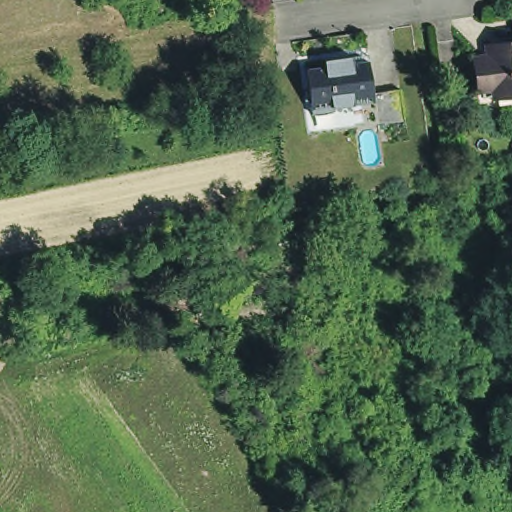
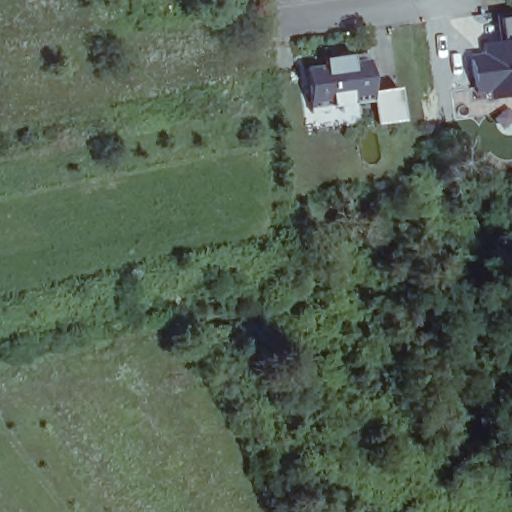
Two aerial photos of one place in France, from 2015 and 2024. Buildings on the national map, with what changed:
unchanged [(495,96),(478,98),(474,69),(491,67),(490,55),(512,52),(512,107),(497,109),(495,96)]
unchanged [(370,99),(327,106),(328,110),(309,113),(302,71),(321,68),(320,61),(345,57),(363,54),(365,62),(369,92),(395,88),(400,119),(374,123),(370,99)]
unchanged [(272,370),(281,385),(265,392),(257,378),(272,370)]

